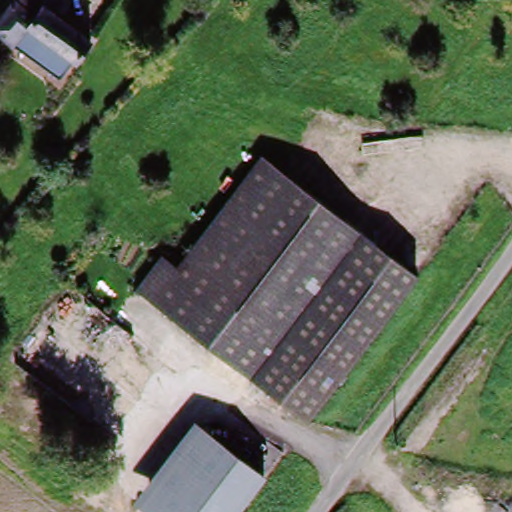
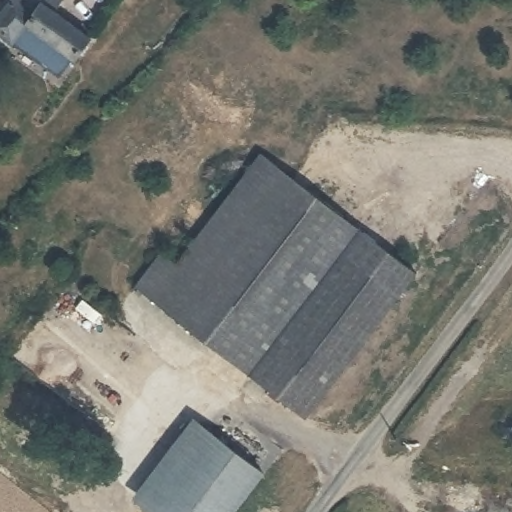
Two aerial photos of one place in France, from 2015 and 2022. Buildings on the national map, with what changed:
unchanged [(12,0),(36,0),(41,4),(44,0),(60,0),(62,2),(54,13),(90,39),(72,63),(27,30),(12,47),(0,37),(0,16),(12,0)]
unchanged [(415,279),(307,422),(137,293),(164,260),(177,270),(260,162),(415,279)]
unchanged [(158,512),(156,512),(142,501),(153,485),(200,422),(215,434),(170,496),(158,512)]
unchanged [(215,434),(270,473),(241,512),(158,512),(170,496),(215,434)]

